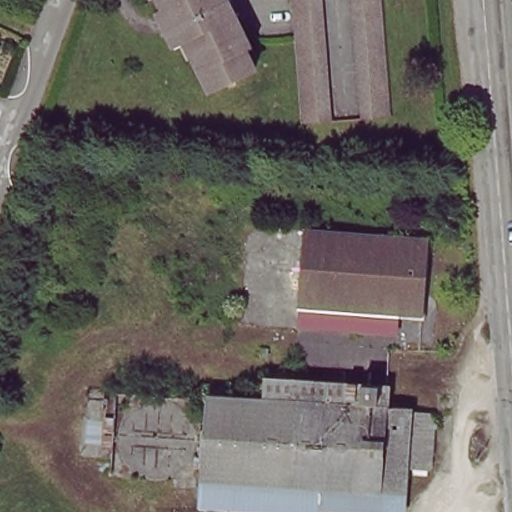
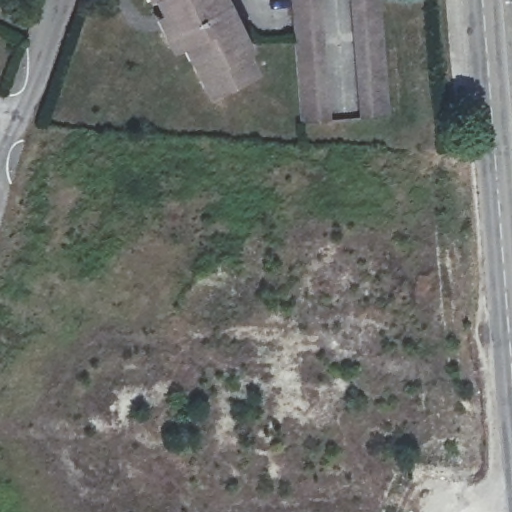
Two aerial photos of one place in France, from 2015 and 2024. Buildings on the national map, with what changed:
unchanged [(205,89),(190,54),(183,57),(172,36),(168,38),(161,24),(154,26),(144,5),(155,0),(229,0),(243,29),(236,32),(253,68),(205,89)]
unchanged [(321,0),(332,115),(298,118),(287,0),(321,0)]
unchanged [(348,0),(381,0),(392,114),(385,115),(359,117),(348,0)]
demolished [(295,303),(300,232),(300,224),(424,232),(423,240),(417,311),(295,303)]
demolished [(415,402),(425,413),(423,456),(400,455),(399,479),(203,468),(203,386),(292,391),(294,365),(379,370),(378,398),(415,402)]
demolished [(399,479),(397,512),(311,512),(200,506),(203,468),(399,479)]

